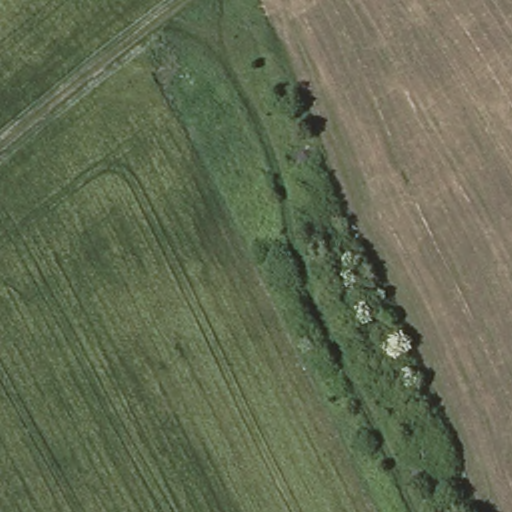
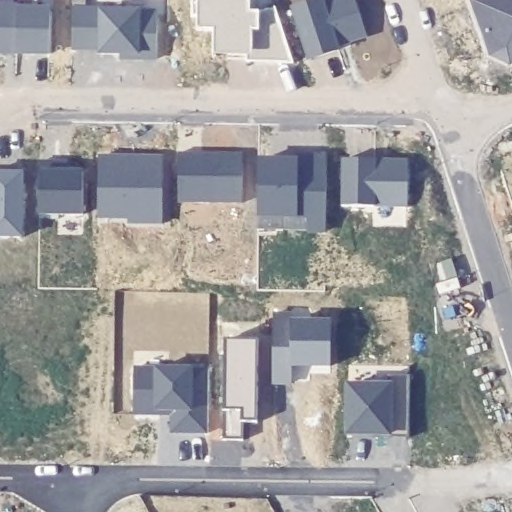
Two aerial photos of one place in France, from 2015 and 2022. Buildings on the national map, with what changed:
new [(260,11),(275,8),(292,64),(247,62),(247,56),(213,54),(214,26),(197,26),(197,0),(250,0),(250,9),(260,11)]
new [(355,0),(367,41),(305,60),(289,6),(311,0),(355,0)]
new [(509,65),(489,56),(470,0),(512,0),(512,64),(509,65)]
new [(50,55),(0,52),(0,5),(50,8),(50,55)]
new [(140,6),(140,11),(157,11),(157,60),(119,60),(118,54),(71,50),(72,6),(140,6)]
new [(242,153),(243,204),(177,203),(178,153),(242,153)]
new [(300,158),(300,154),(327,154),(327,234),(306,233),(305,216),(257,217),(258,156),(300,158)]
new [(163,155),(162,223),(128,224),(128,218),(97,217),(97,155),(163,155)]
new [(407,159),(407,207),(340,205),(341,158),(407,159)]
new [(82,170),(83,214),(37,214),(39,168),(82,170)]
new [(22,238),(0,236),(0,171),(24,172),(22,238)]
new [(452,257),(457,275),(447,278),(442,260),(452,257)]
new [(310,313),(310,318),(330,318),(330,364),(292,365),(292,386),(272,387),(274,312),(310,313)]
new [(257,338),(257,424),(242,423),(242,438),(225,440),(225,338),(257,338)]
new [(207,367),(207,434),(170,435),(170,416),(134,416),(135,366),(207,367)]
new [(390,382),(390,376),(409,376),(408,438),(345,436),(345,383),(390,382)]

